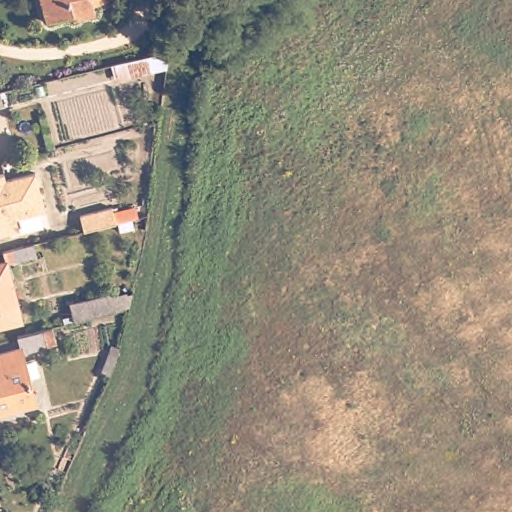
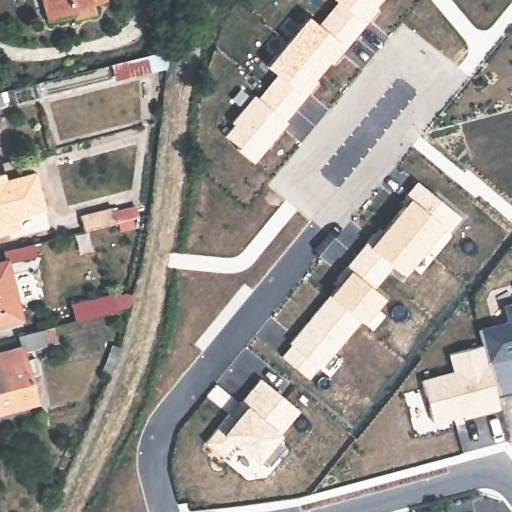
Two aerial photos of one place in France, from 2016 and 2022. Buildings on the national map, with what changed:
unchanged [(98,9),(100,17),(79,21),(77,16),(53,21),(48,0),(108,0),(109,5),(98,9)]
new [(332,54),(307,84),(311,87),(252,163),(236,150),(238,148),(224,136),(234,125),(231,123),(253,96),(258,100),(279,76),(266,66),(307,17),(319,26),(339,4),(334,0),(377,0),(367,11),(372,14),(337,57),(332,54)]
unchanged [(3,114),(0,114),(0,95),(3,114)]
unchanged [(3,174),(5,183),(31,174),(42,213),(16,219),(20,232),(0,237),(0,175),(3,174)]
new [(459,219),(449,234),(440,227),(402,275),(391,268),(372,292),(383,299),(364,324),(358,320),(309,381),(280,358),(291,345),(289,344),(345,274),(342,271),(364,244),(369,247),(406,201),(403,199),(416,183),(459,219)]
unchanged [(31,249),(34,263),(4,270),(18,325),(0,329),(0,267),(3,267),(0,256),(31,249)]
unchanged [(112,294),(114,299),(125,295),(135,299),(133,307),(117,310),(75,321),(71,305),(112,294)]
unchanged [(45,339),(49,359),(23,365),(36,415),(0,425),(0,364),(21,359),(19,346),(45,339)]
new [(450,375),(445,357),(478,348),(495,411),(459,421),(458,417),(429,425),(417,384),(450,375)]
new [(269,467),(261,461),(257,466),(232,446),(223,458),(204,444),(214,431),(220,435),(239,412),(235,408),(259,379),(301,412),(277,442),(284,448),(269,467)]

